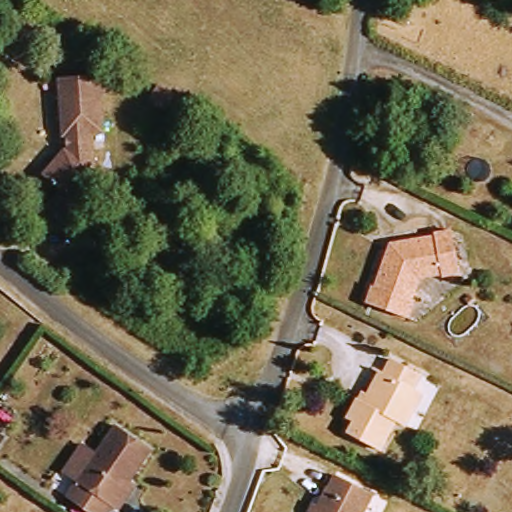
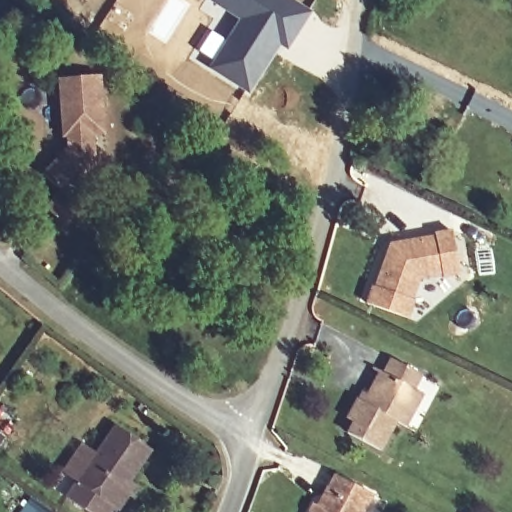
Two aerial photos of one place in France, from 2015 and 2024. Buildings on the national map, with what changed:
new [(224,39),(236,20),(211,0),(294,0),(311,11),(286,50),(280,46),(249,93),(206,65),(208,62),(195,54),(210,29),(224,39)]
unchanged [(65,137),(62,82),(105,79),(109,135),(99,135),(98,153),(109,177),(93,198),(101,206),(80,227),(61,209),(72,195),(56,180),(77,158),(78,137),(65,137)]
unchanged [(182,101),(172,115),(157,103),(166,90),(182,101)]
unchanged [(426,235),(426,231),(445,222),(465,267),(445,276),(444,270),(425,277),(416,300),(420,302),(412,320),(371,302),(378,284),(381,284),(395,250),(426,235)]
unchanged [(356,431),(363,415),(354,409),(362,394),(371,399),(394,353),(427,369),(420,386),(423,388),(407,420),(415,423),(407,439),(397,433),(391,447),(356,431)]
unchanged [(108,512),(92,512),(68,491),(117,427),(151,454),(108,512)]
unchanged [(368,512),(320,512),(340,477),(376,497),(368,512)]

